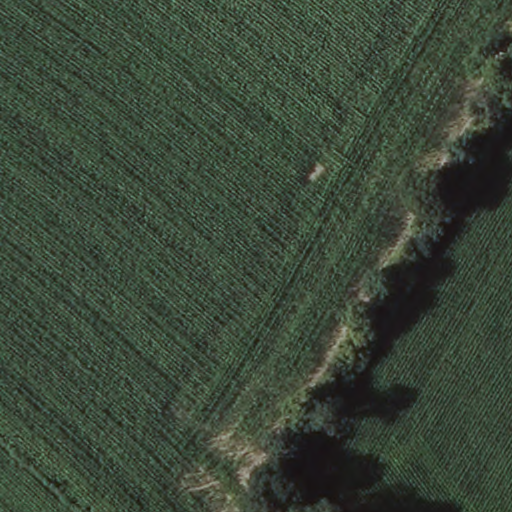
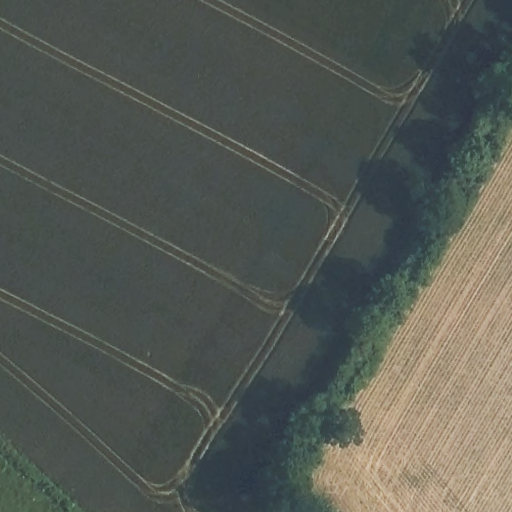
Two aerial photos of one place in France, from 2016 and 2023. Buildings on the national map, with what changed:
[]

